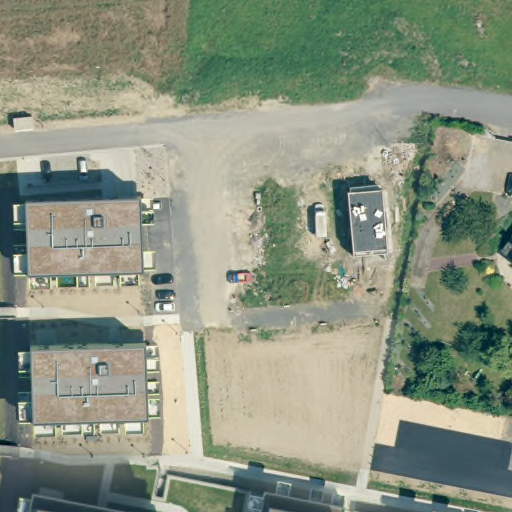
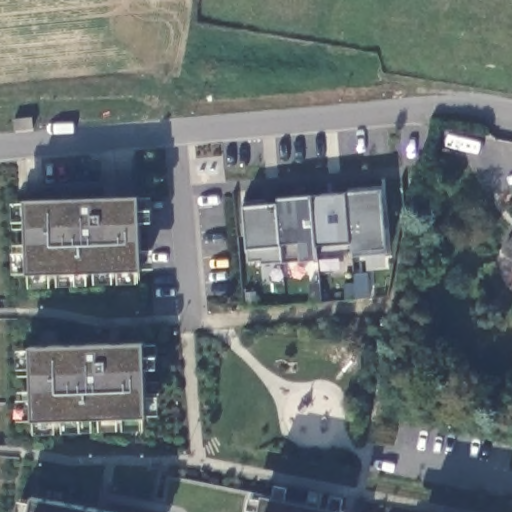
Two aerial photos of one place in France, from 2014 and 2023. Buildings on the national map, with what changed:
unchanged [(345,191),(379,189),(384,248),(352,251),(345,191)]
new [(352,251),(316,255),(317,259),(300,261),(282,262),(261,264),(260,261),(247,262),(247,250),(243,207),(277,204),(276,199),(310,195),(345,191),(352,251)]
unchanged [(143,269),(29,272),(25,200),(139,196),(143,269)]
unchanged [(511,251),(512,249),(512,252),(511,251)]
unchanged [(146,416),(33,420),(30,347),(143,344),(146,416)]
unchanged [(342,510),(342,512),(259,512),(262,495),(342,510)]
unchanged [(103,512),(29,512),(32,499),(103,512)]

